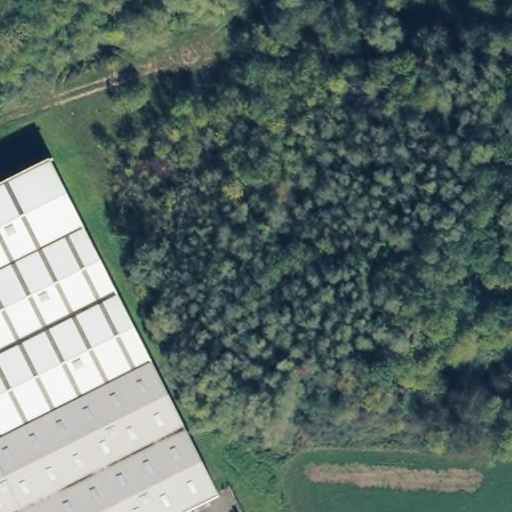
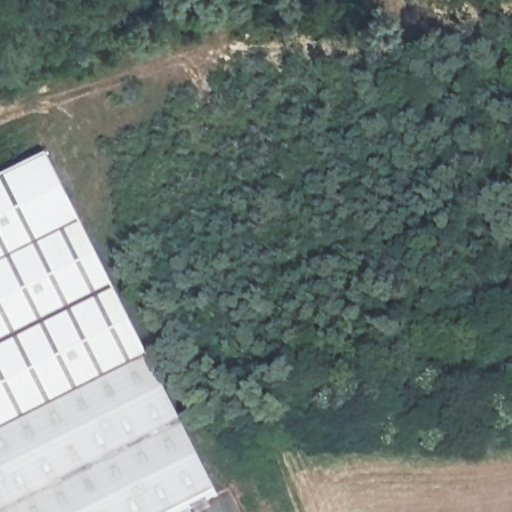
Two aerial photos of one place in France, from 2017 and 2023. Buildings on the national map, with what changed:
unchanged [(51,159),(221,495),(187,512),(0,512),(0,185),(51,159)]

